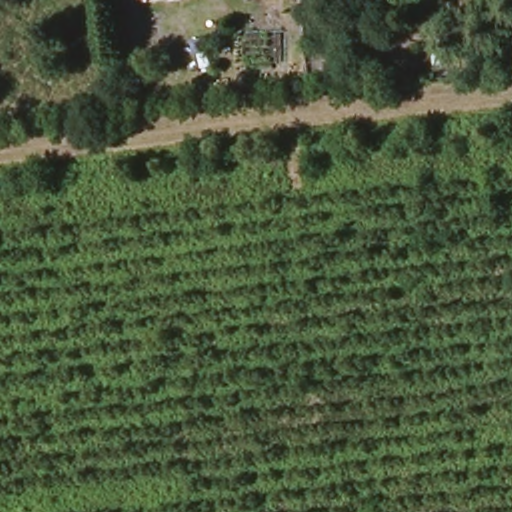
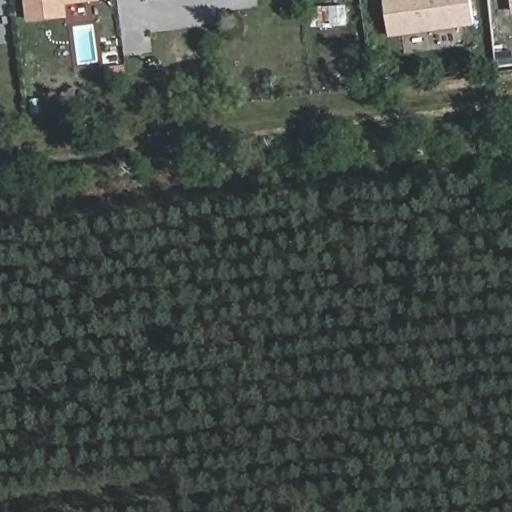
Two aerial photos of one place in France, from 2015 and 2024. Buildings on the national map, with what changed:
new [(66,17),(31,21),(29,0),(88,0),(64,3),(66,17)]
new [(390,36),(385,0),(473,0),(476,23),(390,36)]

